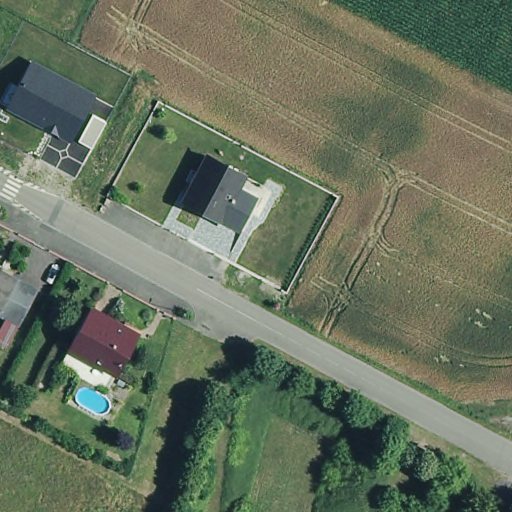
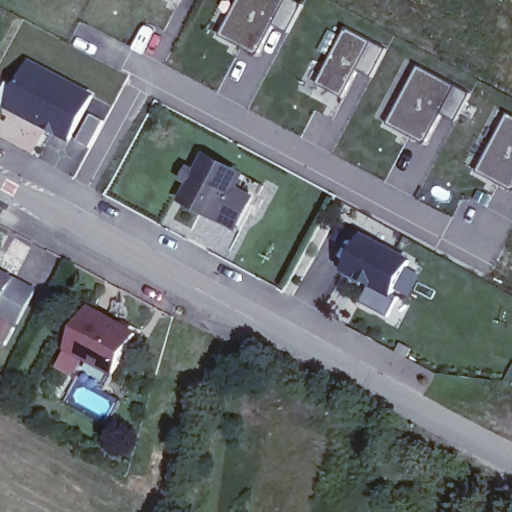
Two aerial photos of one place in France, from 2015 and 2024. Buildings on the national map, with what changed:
new [(294,30),(275,23),(259,49),(226,33),(244,0),(299,0),(306,4),(294,30)]
new [(392,50),(377,79),(362,69),(347,96),(323,83),(350,25),(392,50)]
unchanged [(91,99),(67,142),(10,110),(5,108),(14,90),(28,64),(91,99)]
new [(475,89),(460,123),(445,112),(430,140),(392,124),(427,69),(475,89)]
new [(512,120),(512,187),(483,173),(512,120)]
unchanged [(252,169),(229,214),(192,195),(216,149),(252,169)]
new [(392,299),(343,272),(365,234),(415,259),(392,299)]
unchanged [(23,322),(2,310),(0,309),(0,266),(20,277),(41,289),(23,322)]
unchanged [(95,297),(142,323),(120,363),(72,337),(95,297)]
unchanged [(110,380),(63,354),(72,337),(120,363),(110,380)]

